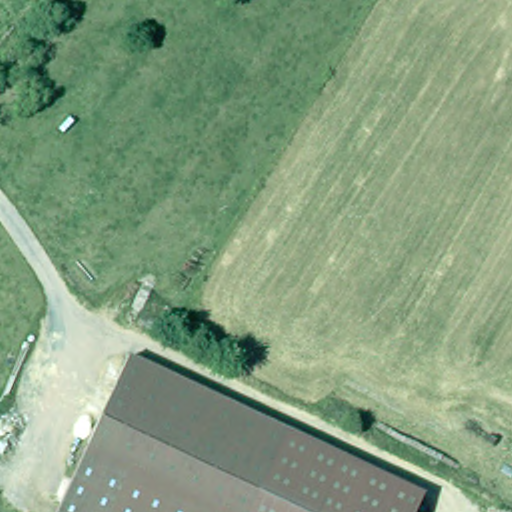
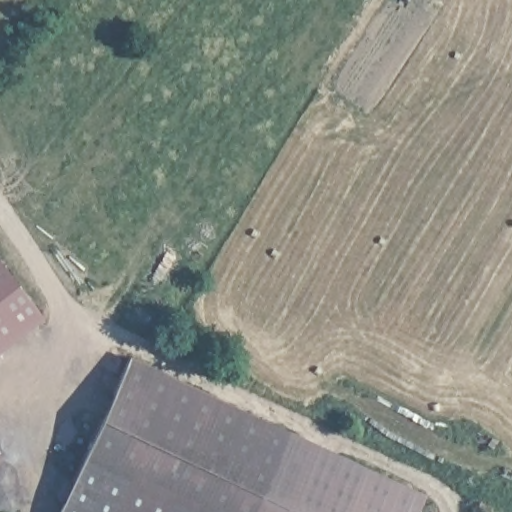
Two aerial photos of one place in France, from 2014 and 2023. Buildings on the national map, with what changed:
new [(0,348),(0,267),(39,318),(0,348)]
unchanged [(126,359),(424,492),(415,512),(57,512),(126,359)]

